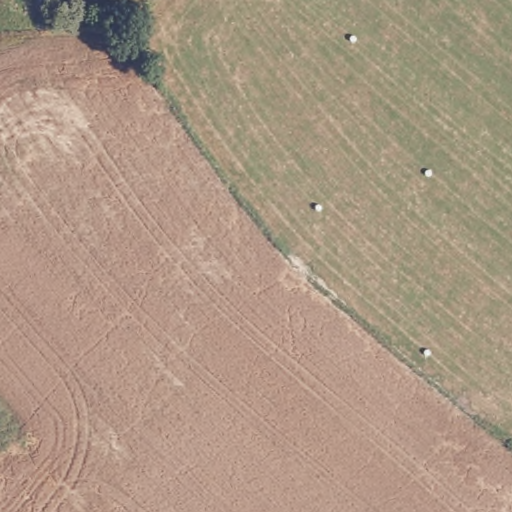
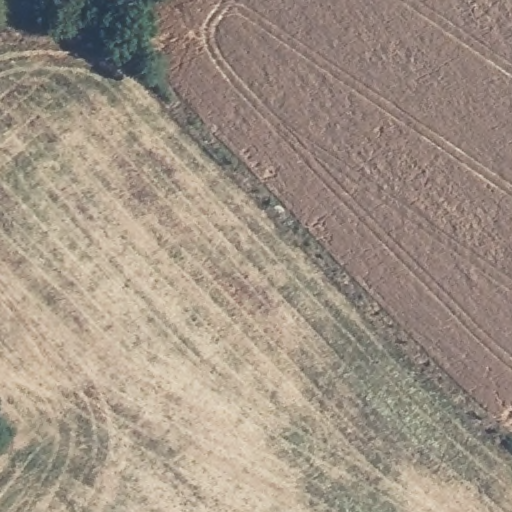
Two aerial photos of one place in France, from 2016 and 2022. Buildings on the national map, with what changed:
unchanged [(41,0),(52,0),(48,5),(41,0)]

